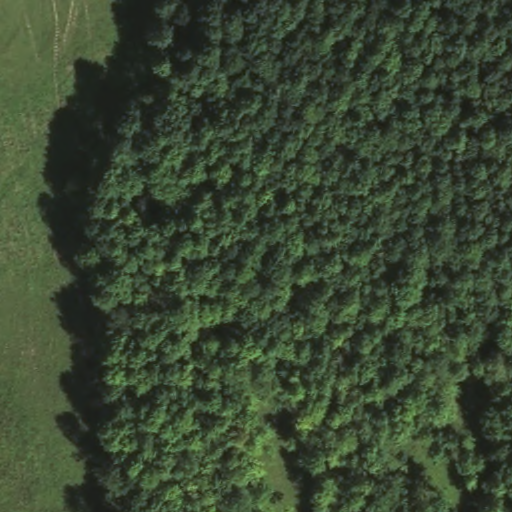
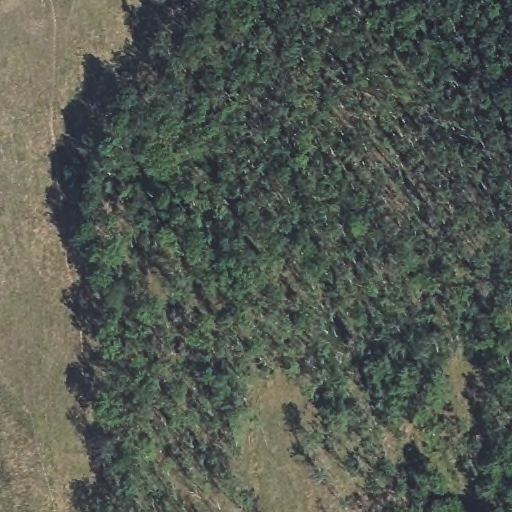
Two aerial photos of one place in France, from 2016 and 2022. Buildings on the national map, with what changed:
[]

